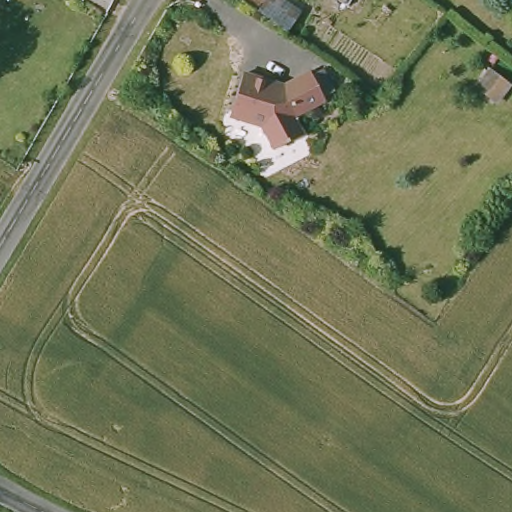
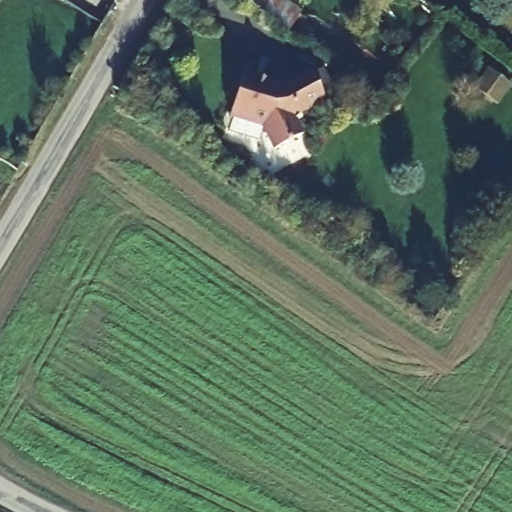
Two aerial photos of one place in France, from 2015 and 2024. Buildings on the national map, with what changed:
unchanged [(307,16),(302,22),(295,17),(285,33),(262,17),(238,0),(255,0),(262,4),(265,0),(271,0),(295,16),(298,11),(307,16)]
unchanged [(242,74),(277,82),(304,67),(322,95),(292,114),(306,136),(285,149),(278,144),(270,130),(260,131),(252,126),(233,122),(235,113),(242,74)]

